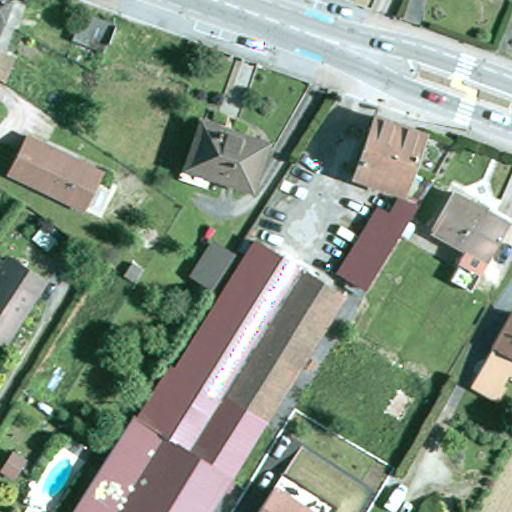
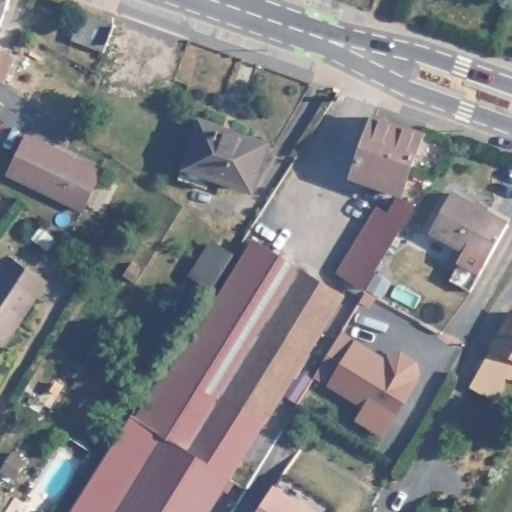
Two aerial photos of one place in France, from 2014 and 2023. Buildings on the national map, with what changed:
unchanged [(9,0),(0,27),(0,0),(9,0)]
unchanged [(73,40),(82,13),(113,25),(105,51),(73,40)]
unchanged [(0,81),(0,53),(10,57),(1,81),(0,81)]
unchanged [(402,194),(353,177),(374,118),(422,135),(402,194)]
unchanged [(265,146),(250,188),(202,172),(187,166),(202,123),(227,132),(265,146)]
unchanged [(99,175),(96,180),(80,213),(7,176),(25,138),(75,163),(99,175)]
unchanged [(460,258),(465,249),(431,230),(452,192),(507,224),(486,260),(480,270),(460,258)]
unchanged [(345,285),(348,279),(335,271),(376,208),(388,215),(397,199),(415,205),(360,295),(345,285)]
unchanged [(55,239),(47,249),(32,238),(40,228),(55,239)]
unchanged [(343,297),(230,477),(197,456),(137,418),(170,367),(173,369),(255,241),(280,257),(343,297)]
unchanged [(214,244),(234,256),(213,288),(194,276),(214,244)]
unchanged [(27,310),(23,307),(12,324),(15,326),(5,342),(0,339),(0,269),(8,257),(45,282),(27,310)]
unchanged [(494,397),(470,384),(512,312),(512,374),(508,372),(494,397)]
new [(356,339),(387,355),(403,350),(419,360),(422,376),(385,438),(355,420),(363,407),(327,383),(315,377),(343,329),(356,339)]
unchanged [(110,448),(132,415),(137,418),(197,456),(230,477),(209,512),(69,512),(110,448)]
unchanged [(13,478),(2,471),(13,453),(25,461),(13,478)]
unchanged [(275,487),(312,512),(259,512),(275,487)]

